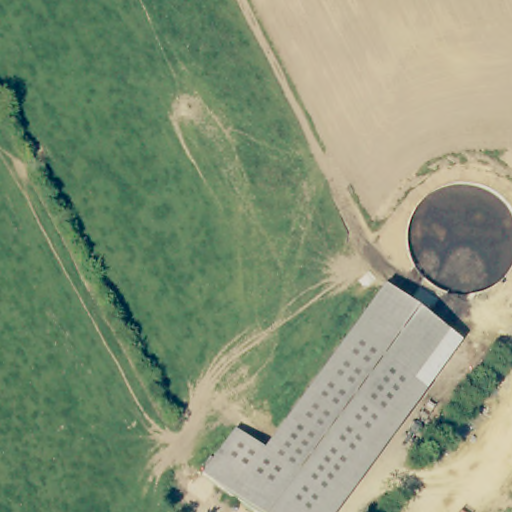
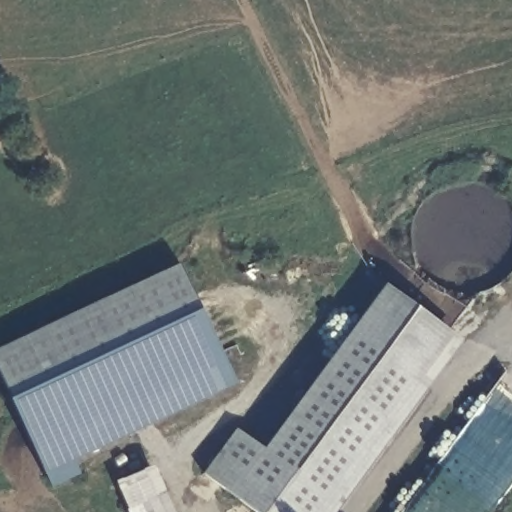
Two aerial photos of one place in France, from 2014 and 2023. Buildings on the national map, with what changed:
new [(179,263),(236,384),(73,462),(80,475),(50,487),(0,375),(0,348),(179,263)]
unchanged [(237,423),(265,444),(389,282),(450,329),(310,512),(260,512),(236,494),(202,468),(212,455),(237,423)]
new [(463,339),(336,512),(310,512),(450,329),(463,339)]

